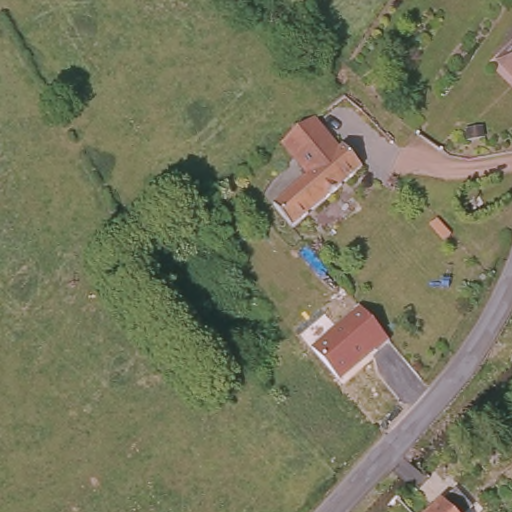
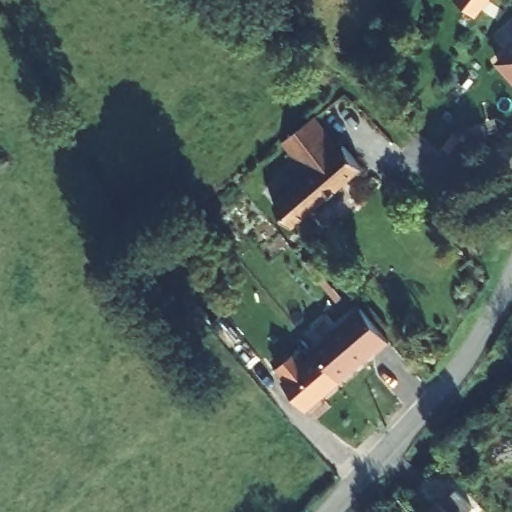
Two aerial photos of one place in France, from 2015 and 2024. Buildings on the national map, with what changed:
unchanged [(512,77),(496,61),(512,46),(512,77)]
unchanged [(332,146),(337,143),(356,165),(325,195),(304,173),(303,171),(275,142),(280,137),(305,118),(332,146)]
unchanged [(288,229),(267,207),(304,173),(325,195),(288,229)]
unchanged [(360,307),(390,342),(340,383),(312,350),(360,307)]
new [(305,413),(280,383),(285,377),(276,368),(296,349),(305,358),(312,350),(340,383),(305,413)]
unchanged [(440,503),(456,489),(474,509),(470,512),(449,512),(440,503)]
unchanged [(440,503),(449,512),(431,512),(440,503)]

